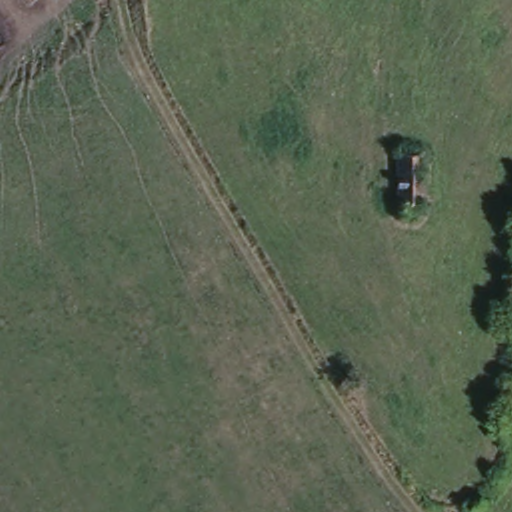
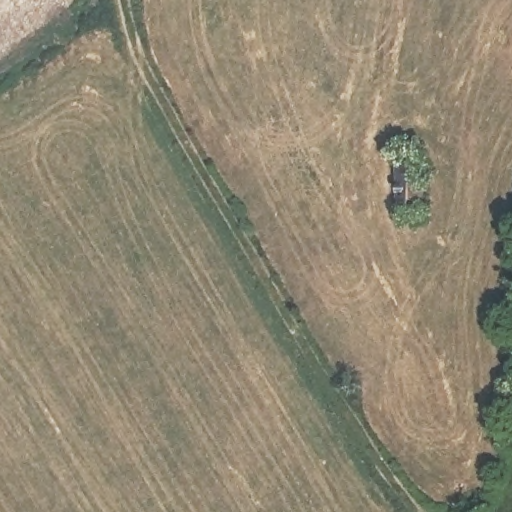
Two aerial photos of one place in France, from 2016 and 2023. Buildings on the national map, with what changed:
unchanged [(424,154),(423,211),(404,211),(402,155),(424,154)]

